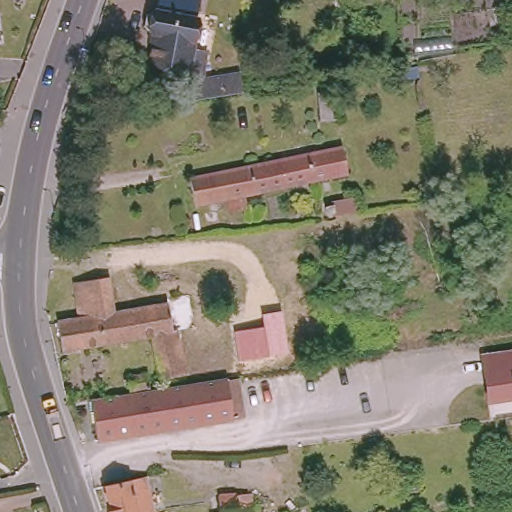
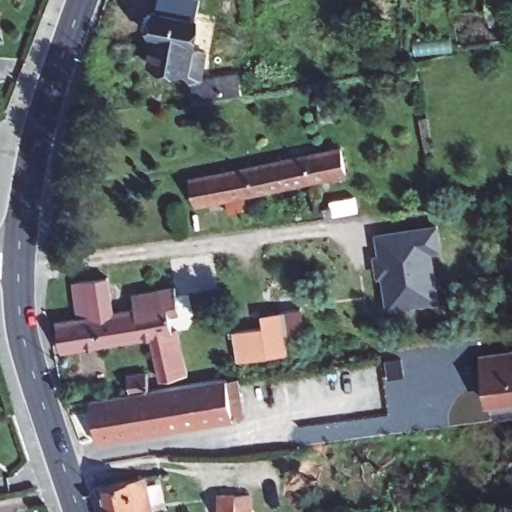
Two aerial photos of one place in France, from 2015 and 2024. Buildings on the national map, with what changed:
unchanged [(196,97),(194,82),(186,72),(186,69),(150,62),(155,31),(150,30),(146,24),(147,12),(155,7),(157,7),(158,0),(200,0),(199,16),(201,16),(196,46),(208,49),(204,77),(240,70),(244,89),(196,97)]
unchanged [(421,78),(401,82),(399,72),(419,69),(421,78)]
unchanged [(331,94),(334,120),(322,122),(319,95),(331,94)]
unchanged [(344,171),(242,191),(244,205),(225,209),(222,196),(194,201),(189,175),(338,145),(344,171)]
unchanged [(358,213),(334,217),(334,215),(327,216),(326,209),(333,208),(332,204),(356,200),(358,213)]
unchanged [(218,213),(221,230),(209,232),(205,216),(218,213)]
new [(442,251),(433,252),(440,302),(389,309),(385,277),(378,278),(376,256),(381,255),(379,234),(438,226),(442,251)]
unchanged [(169,301),(170,310),(175,327),(178,327),(189,371),(164,376),(152,332),(62,346),(57,318),(79,315),(74,278),(107,273),(113,310),(167,301),(169,301)]
unchanged [(245,331),(243,318),(262,315),(269,357),(233,363),(229,333),(245,331)]
unchanged [(481,355),(512,350),(512,401),(486,405),(481,355)]
unchanged [(129,372),(148,369),(151,377),(159,376),(160,385),(226,375),(232,417),(226,417),(96,437),(90,395),(133,388),(129,372)]
unchanged [(150,504),(151,512),(109,512),(102,482),(142,472),(150,504)]
unchanged [(238,494),(238,497),(250,496),(252,496),(253,512),(221,512),(220,496),(238,494)]

